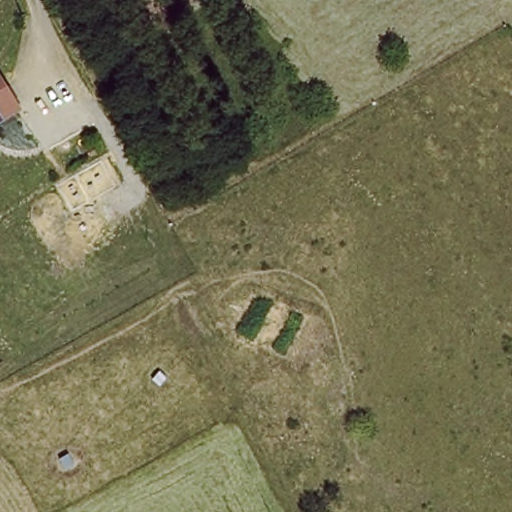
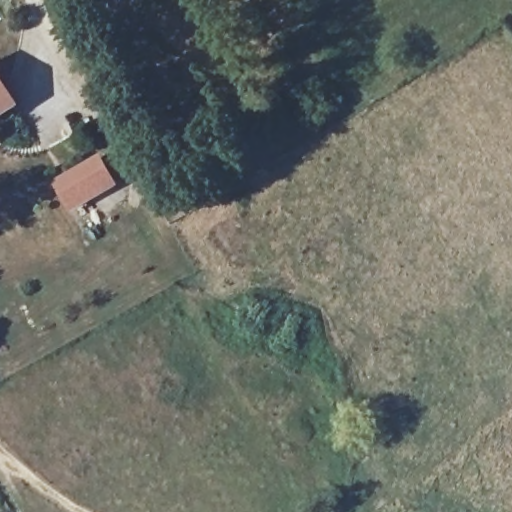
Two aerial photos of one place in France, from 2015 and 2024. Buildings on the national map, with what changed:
unchanged [(0,116),(0,69),(21,105),(0,116)]
new [(100,154),(120,186),(71,215),(52,183),(100,154)]

